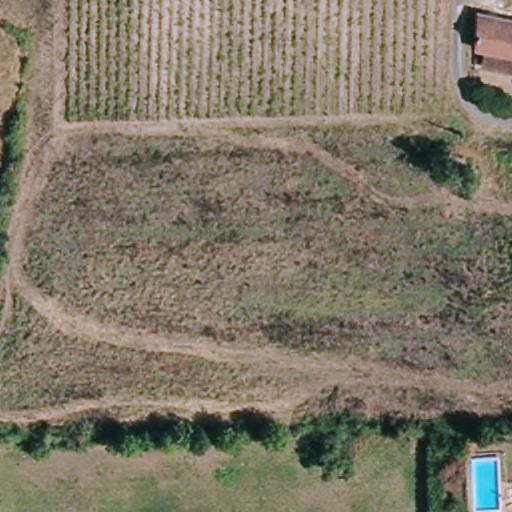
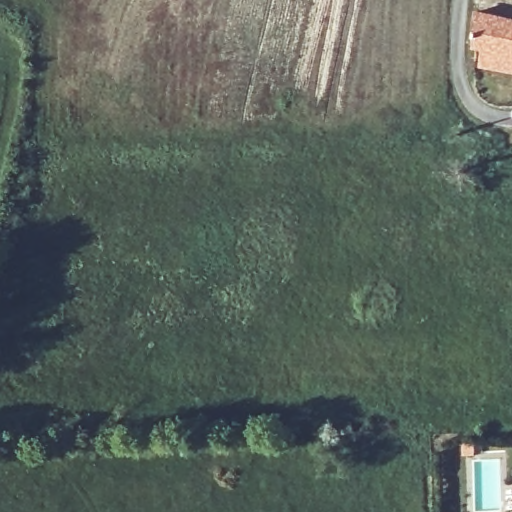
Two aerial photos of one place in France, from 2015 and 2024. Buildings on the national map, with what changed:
unchanged [(473,49),(473,15),(512,21),(512,73),(483,69),(484,51),(473,49)]

